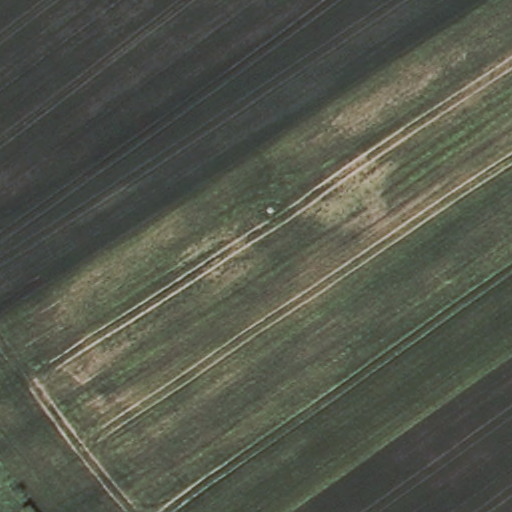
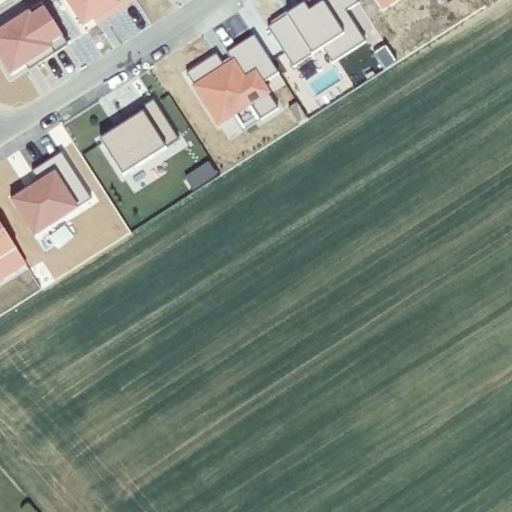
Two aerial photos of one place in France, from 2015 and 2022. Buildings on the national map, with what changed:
new [(137,0),(139,3),(110,21),(107,17),(87,30),(67,0),(137,0)]
new [(357,0),(362,7),(350,15),(369,46),(335,68),(326,53),(296,71),(271,32),(290,20),(289,17),(293,22),(291,19),(307,9),(305,5),(314,0),(357,0)]
new [(409,0),(385,15),(375,0),(409,0)]
new [(72,49),(39,70),(36,65),(14,80),(0,58),(0,36),(45,7),(72,49)]
new [(107,17),(110,21),(100,28),(97,24),(107,17)]
new [(265,87),(281,112),(264,124),(253,107),(221,127),(189,77),(219,57),(228,71),(236,66),(229,56),(257,39),(282,76),(265,87)]
new [(126,180),(104,144),(128,129),(125,124),(157,104),(182,144),(126,180)]
new [(39,180),(34,171),(62,154),(91,199),(34,232),(11,199),(39,180)]
new [(29,270),(0,288),(0,225),(29,270)]

